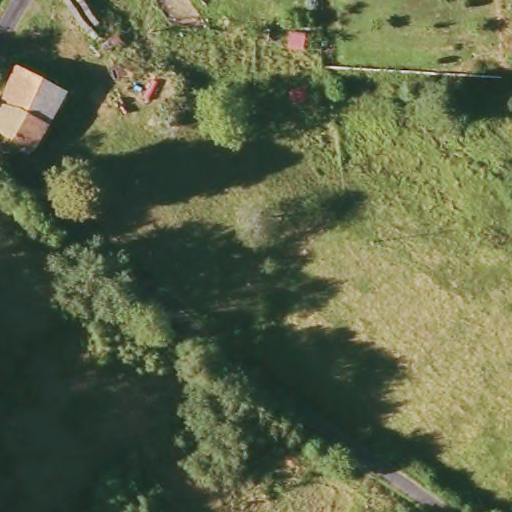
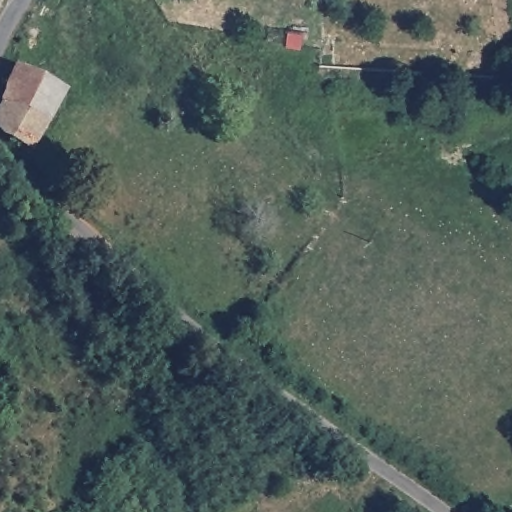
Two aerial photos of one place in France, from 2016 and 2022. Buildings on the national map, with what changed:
unchanged [(14,69),(34,79),(58,91),(32,152),(0,139),(0,102),(14,69)]

